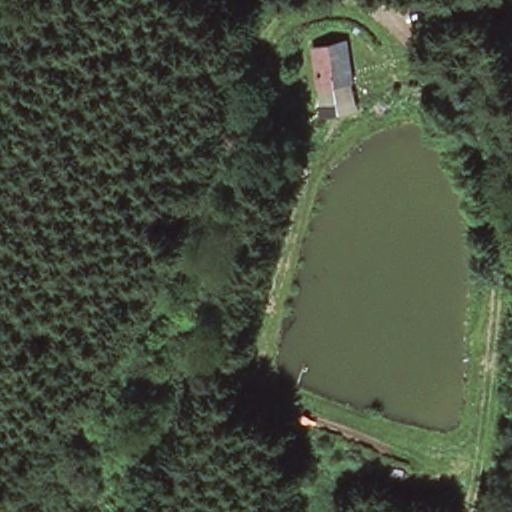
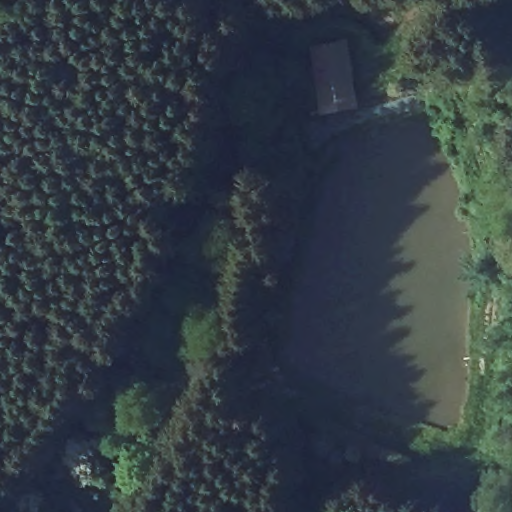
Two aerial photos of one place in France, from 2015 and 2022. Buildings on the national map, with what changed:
unchanged [(355,80),(317,85),(313,49),(348,40),(355,80)]
unchanged [(345,105),(322,116),(316,103),(339,94),(345,105)]

